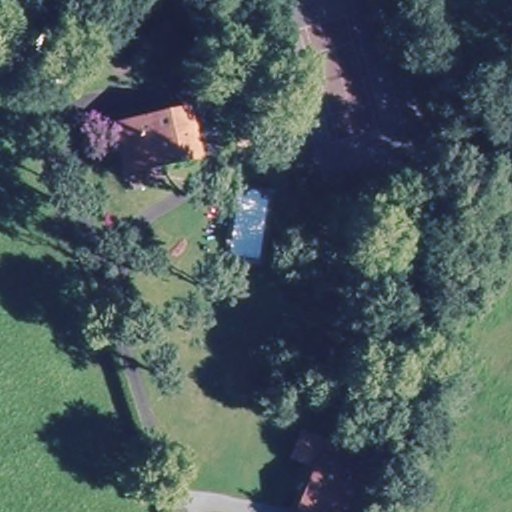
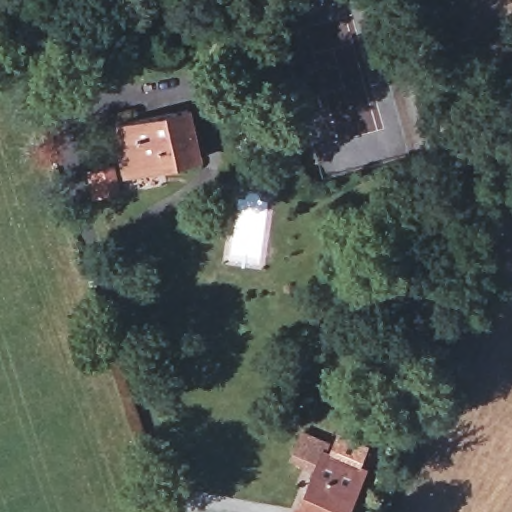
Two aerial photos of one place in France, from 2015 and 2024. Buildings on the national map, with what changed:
unchanged [(186,108),(197,156),(121,175),(110,125),(186,108)]
unchanged [(294,512),(313,468),(289,458),(299,435),(322,445),(319,454),(363,472),(346,512),(294,512)]

